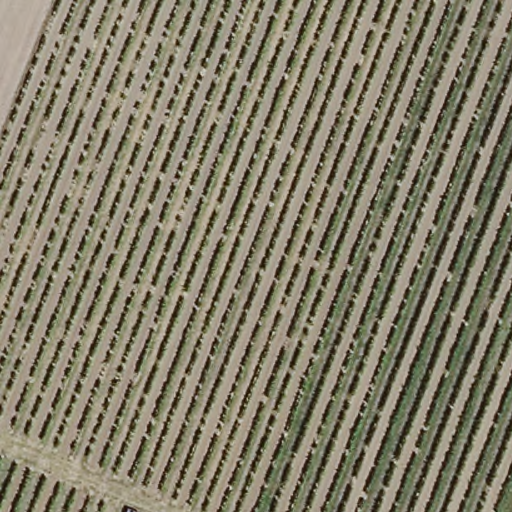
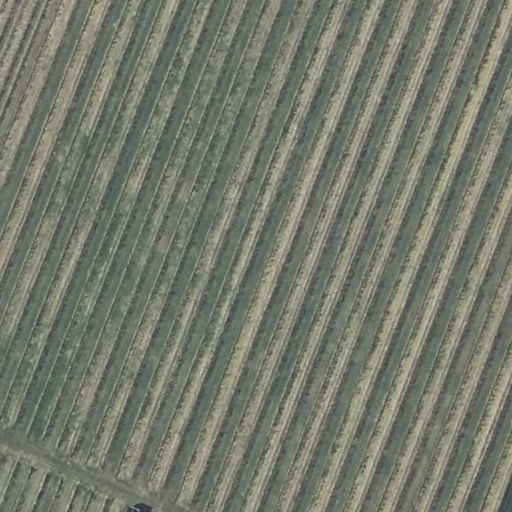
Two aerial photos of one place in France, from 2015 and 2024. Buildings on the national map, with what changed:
[]

